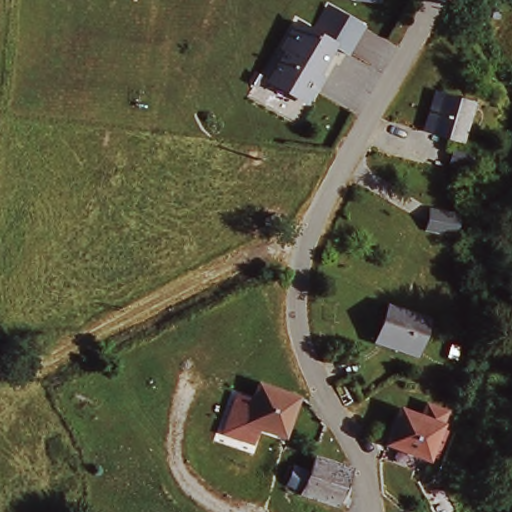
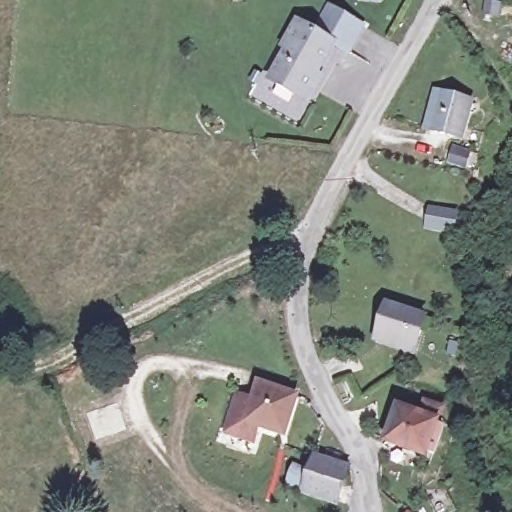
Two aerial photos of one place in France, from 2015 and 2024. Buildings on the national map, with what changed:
unchanged [(293,95),(261,73),(280,45),(276,42),(283,32),(292,18),(310,29),(325,5),(335,11),(356,26),(340,51),(327,43),(308,72),(312,74),(297,97),(293,95)]
unchanged [(458,131),(428,122),(422,121),(433,85),(438,86),(470,94),(458,131)]
unchanged [(466,147),(462,159),(448,156),(451,144),(466,147)]
unchanged [(275,209),(281,220),(270,226),(263,216),(275,209)]
unchanged [(453,215),(447,232),(423,225),(428,209),(453,215)]
unchanged [(372,340),(373,334),(382,305),(420,317),(412,346),(410,352),(372,340)]
unchanged [(287,383),(277,421),(245,411),(251,391),(255,379),(257,372),(287,383)]
unchanged [(436,448),(428,446),(436,421),(427,444),(425,450),(382,434),(395,401),(437,416),(436,420),(445,424),(436,448)]
unchanged [(352,452),(340,487),(310,477),(310,473),(301,470),(306,453),(311,455),(315,456),(321,441),(352,452)]
unchanged [(409,512),(408,512),(408,511),(409,512)]

